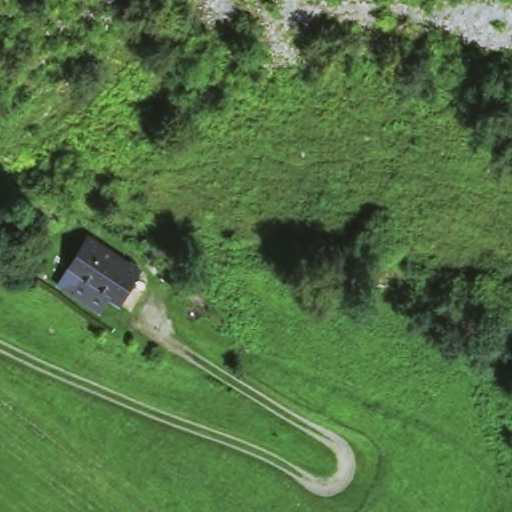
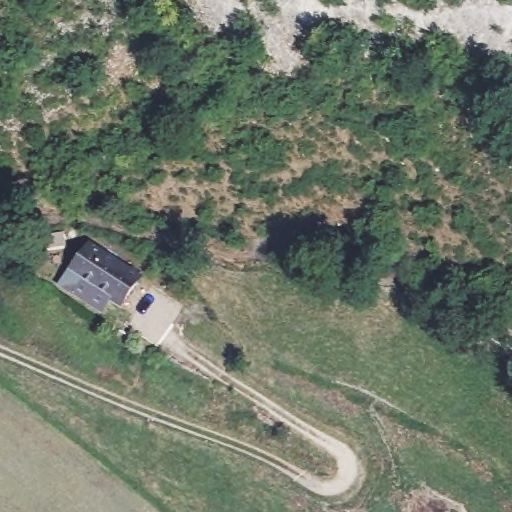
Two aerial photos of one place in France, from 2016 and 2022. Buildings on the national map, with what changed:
unchanged [(80,236),(135,258),(118,302),(59,276),(80,236)]

